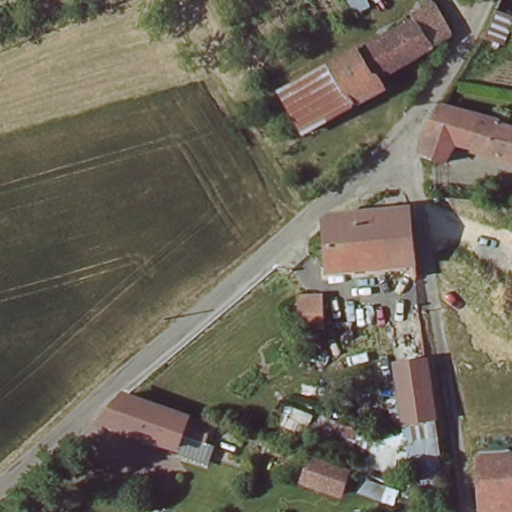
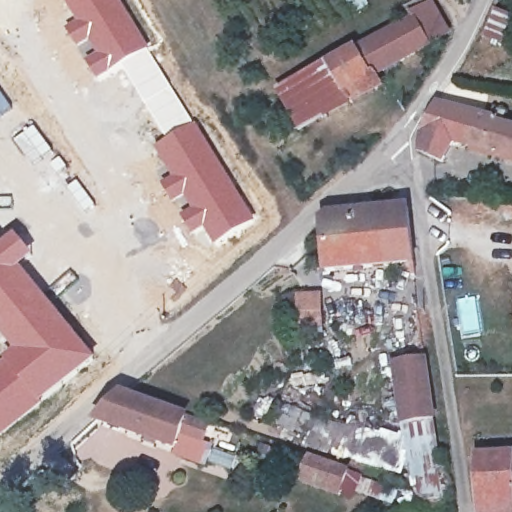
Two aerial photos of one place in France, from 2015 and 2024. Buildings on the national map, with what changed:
new [(147,46),(120,65),(97,81),(64,29),(76,21),(63,0),(121,0),(149,45),(147,46)]
unchanged [(454,29),(373,74),(381,89),(357,103),(332,65),(331,63),(330,61),(355,45),(358,51),(392,33),(424,16),(421,11),(439,0),(454,29)]
unchanged [(347,21),(335,0),(368,0),(372,6),(358,14),(347,21)]
new [(147,46),(194,121),(164,138),(120,65),(147,46)]
unchanged [(357,103),(306,134),(284,96),(280,91),(331,63),(332,65),(357,103)]
new [(13,108),(0,117),(0,90),(13,108)]
unchanged [(493,119),(512,123),(512,156),(455,143),(450,158),(425,152),(424,125),(438,101),(494,113),(493,119)]
new [(164,138),(194,121),(210,145),(256,220),(212,246),(201,231),(191,237),(178,214),(187,208),(181,200),(173,205),(159,180),(168,174),(152,146),(164,138)]
unchanged [(414,279),(326,289),(323,233),(404,224),(414,279)]
new [(4,243),(16,232),(35,257),(23,267),(97,359),(39,409),(0,438),(0,364),(14,351),(0,334),(0,238),(4,243)]
unchanged [(301,329),(300,302),(318,301),(320,304),(321,322),(321,328),(302,329),(301,329)]
unchanged [(404,429),(394,359),(428,354),(438,424),(448,495),(427,499),(414,501),(404,429)]
unchanged [(203,444),(185,439),(182,451),(97,423),(128,395),(209,422),(203,444)]
unchanged [(310,435),(314,418),(392,436),(388,453),(368,449),(365,463),(307,449),(310,435)]
unchanged [(479,454),(512,452),(512,512),(481,512),(479,454)]
unchanged [(347,471),(337,498),(298,486),(309,456),(347,471)]

